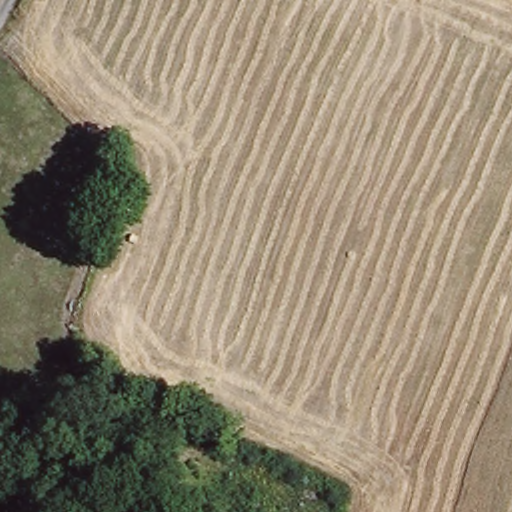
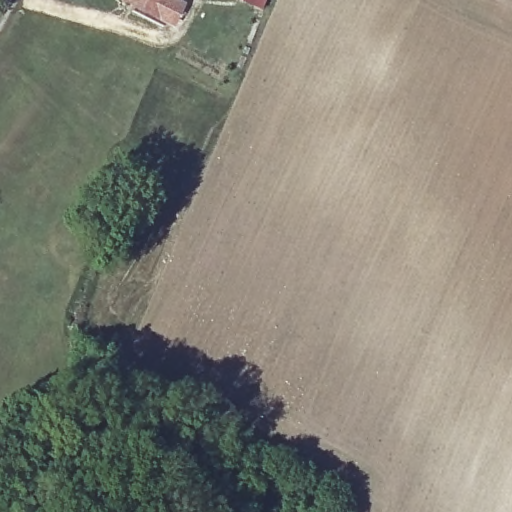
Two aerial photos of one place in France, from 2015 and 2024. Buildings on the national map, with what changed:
new [(183,5),(172,27),(121,1),(121,0),(175,0),(183,5)]

